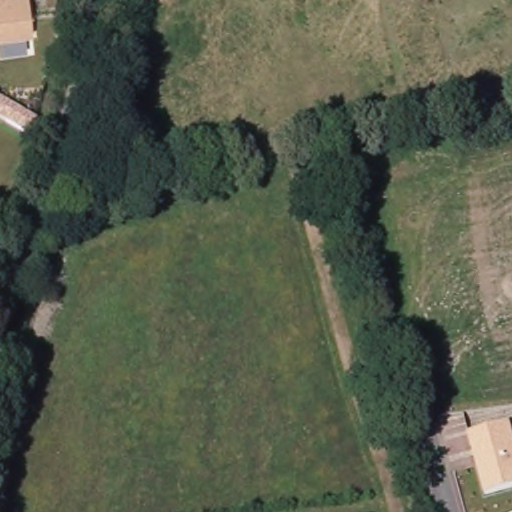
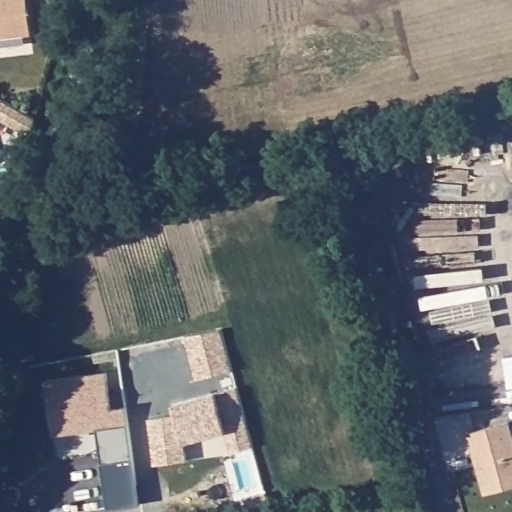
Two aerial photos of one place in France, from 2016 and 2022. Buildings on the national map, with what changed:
unchanged [(0,41),(0,0),(29,0),(32,38),(0,41)]
unchanged [(31,135),(0,120),(0,96),(39,119),(31,135)]
new [(222,328),(234,369),(197,379),(186,335),(222,328)]
new [(107,372),(112,409),(127,407),(134,459),(102,463),(97,429),(53,435),(46,381),(107,372)]
new [(232,451),(227,432),(226,431),(185,442),(187,460),(155,464),(150,418),(177,414),(174,404),(238,386),(249,426),(254,445),(232,451)]
unchanged [(512,435),(512,489),(484,496),(477,467),(472,451),(467,434),(509,424),(512,435)]
new [(134,459),(141,504),(108,509),(102,463),(134,459)]

